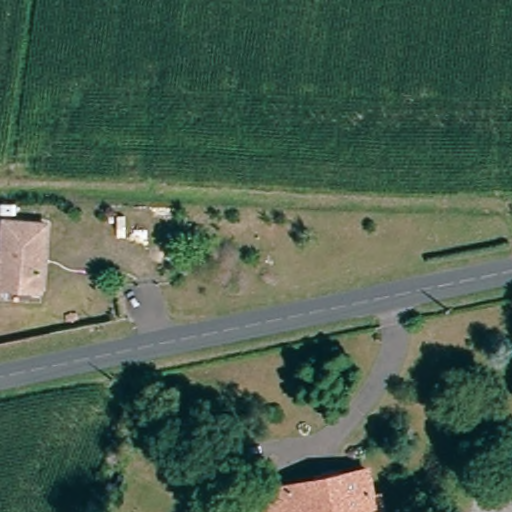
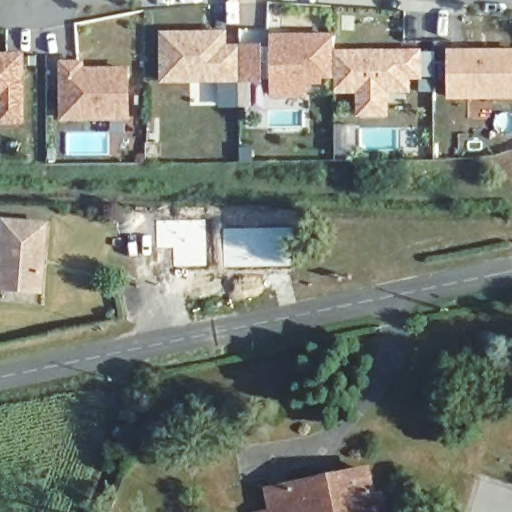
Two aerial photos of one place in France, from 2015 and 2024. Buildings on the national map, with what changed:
new [(272,99),(270,34),(336,34),(337,50),(337,80),(323,80),(323,85),(307,85),(307,99),(272,99)]
new [(171,35),(232,35),(232,50),(247,50),(247,82),(171,82),(171,35)]
new [(337,50),(423,48),(423,80),(412,81),(412,94),(390,95),(390,118),(357,119),(356,95),(337,95),(337,50)]
new [(497,55),(512,55),(512,101),(457,103),(456,56),(490,55),(497,55)]
new [(30,124),(7,124),(0,124),(0,58),(30,57),(30,124)]
new [(60,59),(86,60),(86,67),(132,69),(132,122),(60,124),(60,59)]
new [(207,219),(207,266),(175,267),(174,247),(157,247),(157,221),(207,219)]
unchanged [(0,292),(0,225),(36,226),(31,293),(0,292)]
new [(293,227),(294,266),(225,268),(224,230),(293,227)]
unchanged [(288,492),(287,488),(314,483),(336,480),(363,475),(368,500),(376,500),(378,512),(264,512),(271,510),(268,495),(288,492)]

